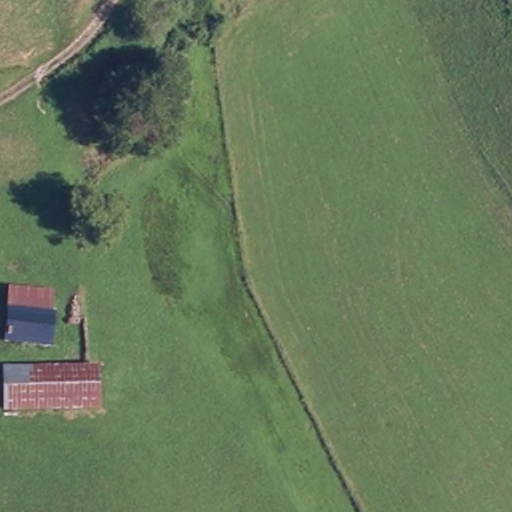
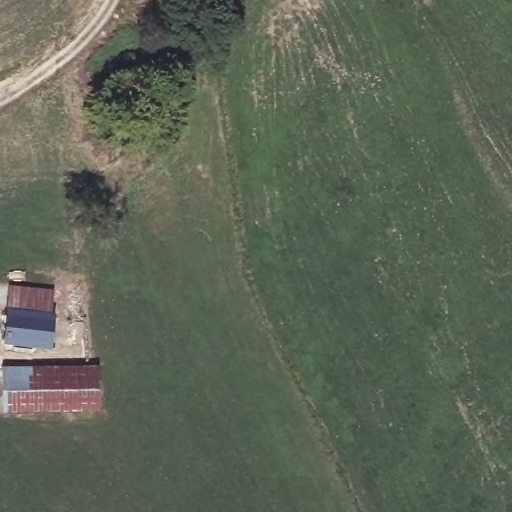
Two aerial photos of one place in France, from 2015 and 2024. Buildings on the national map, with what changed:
unchanged [(63,316),(62,335),(14,336),(13,287),(53,289),(53,305),(63,305),(63,316)]
unchanged [(91,370),(97,371),(97,410),(8,413),(7,372),(91,370)]

